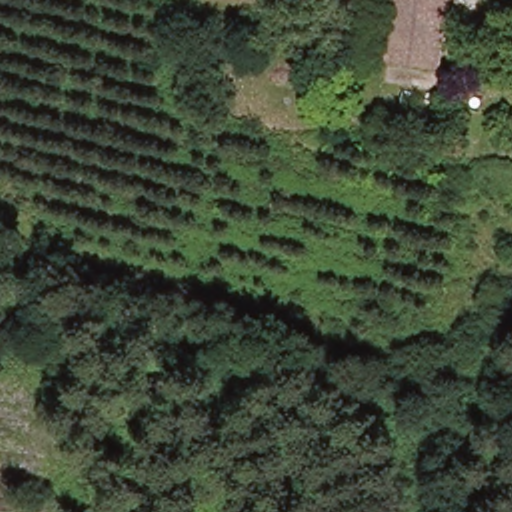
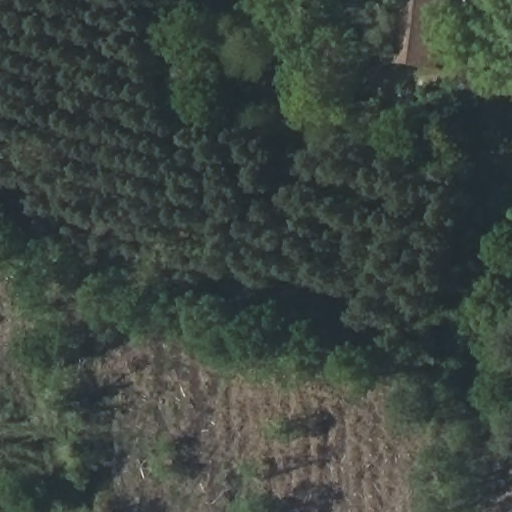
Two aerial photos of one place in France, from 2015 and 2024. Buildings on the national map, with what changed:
unchanged [(438,69),(400,64),(387,62),(395,0),(447,0),(438,69)]

